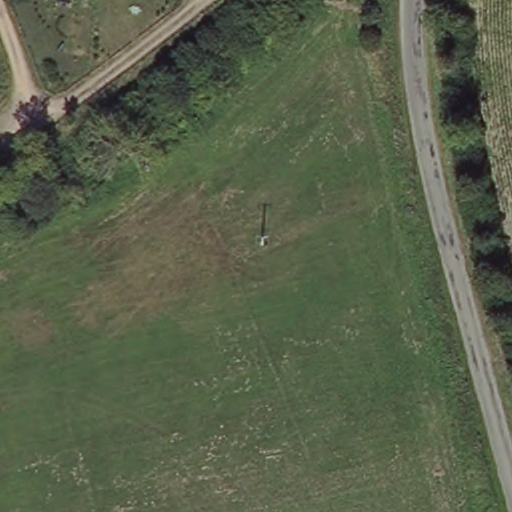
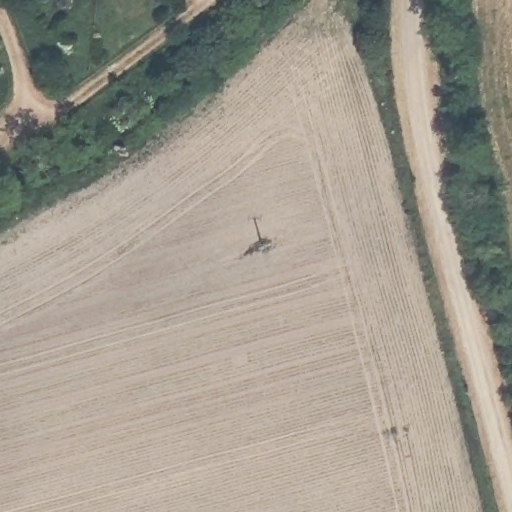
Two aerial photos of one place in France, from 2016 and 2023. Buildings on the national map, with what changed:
[]

